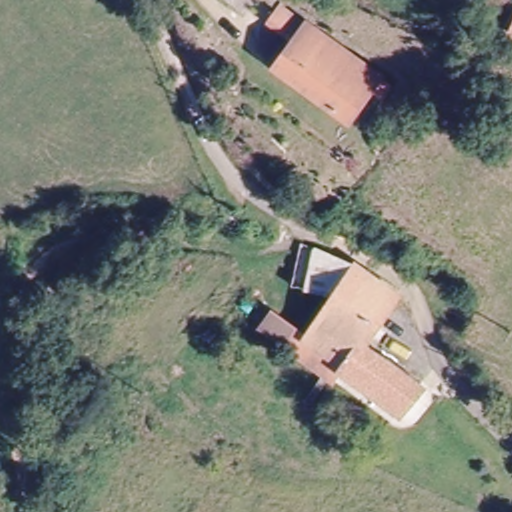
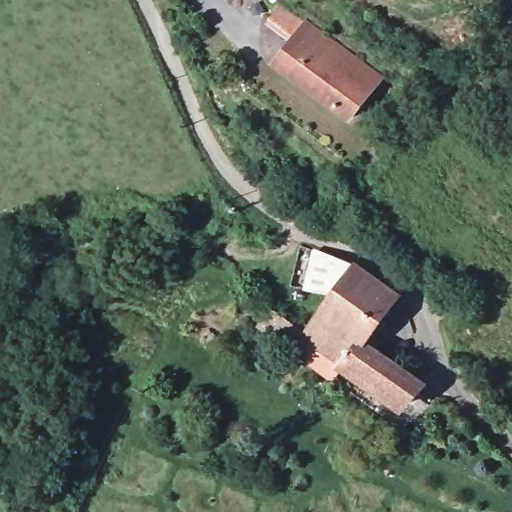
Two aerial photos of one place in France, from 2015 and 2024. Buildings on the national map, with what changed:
unchanged [(346,118),(277,56),(297,33),(311,18),(322,28),(381,79),(346,118)]
unchanged [(333,284),(299,272),(307,245),(354,257),(333,284)]
unchanged [(393,285),(362,329),(357,337),(313,311),(333,284),(354,257),(392,284),(393,285)]
unchanged [(362,329),(419,373),(432,383),(416,408),(328,341),(319,354),(303,343),(295,337),(287,331),(280,326),(292,307),(308,319),(313,311),(357,337),(362,329)]

